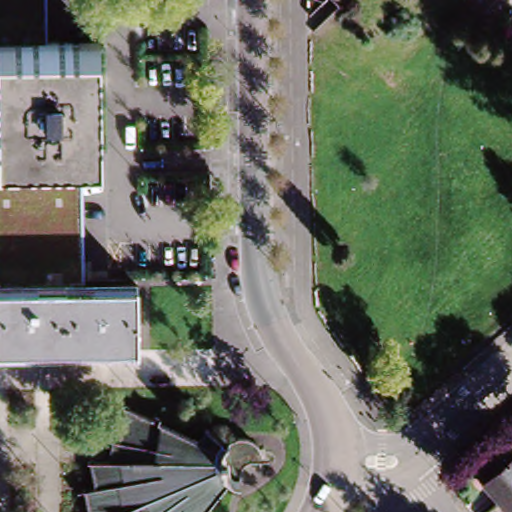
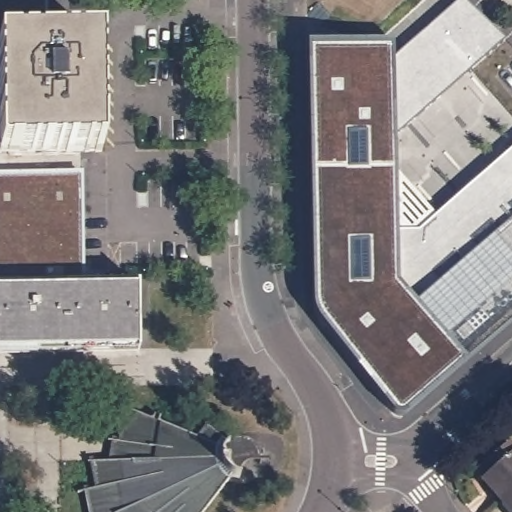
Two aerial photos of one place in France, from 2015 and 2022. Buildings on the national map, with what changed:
unchanged [(41,37),(0,39),(0,0),(40,0),(41,37)]
new [(402,411),(397,413),(392,413),(320,322),(313,312),(311,302),(308,44),(392,42),(391,61),(458,0),(465,0),(505,39),(395,133),(395,230),(420,230),(512,148),(512,318),(465,359),(402,411)]
unchanged [(104,36),(107,154),(46,156),(1,155),(0,97),(0,39),(41,37),(104,36)]
unchanged [(0,285),(0,97),(1,155),(46,156),(48,188),(87,188),(81,284),(0,285)]
unchanged [(81,284),(144,283),(146,353),(0,355),(0,285),(81,284)]
unchanged [(141,404),(152,410),(151,420),(186,436),(202,426),(220,443),(226,439),(232,437),(238,437),(242,439),(246,441),(250,444),(253,448),(256,455),(263,456),(264,459),(246,460),(241,463),(237,467),(236,472),(237,479),(227,476),(199,512),(81,512),(78,489),(91,486),(88,461),(103,459),(108,439),(113,439),(121,408),(132,413),(141,404)]
unchanged [(480,479),(483,477),(477,471),(489,461),(495,467),(512,452),(512,490),(500,500),(480,479)]
unchanged [(512,490),(512,512),(510,512),(500,500),(512,490)]

